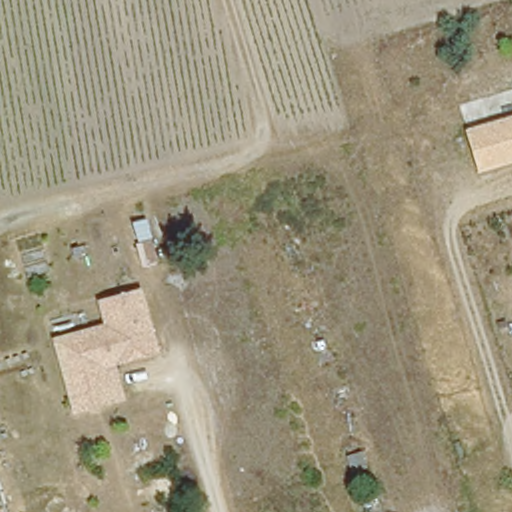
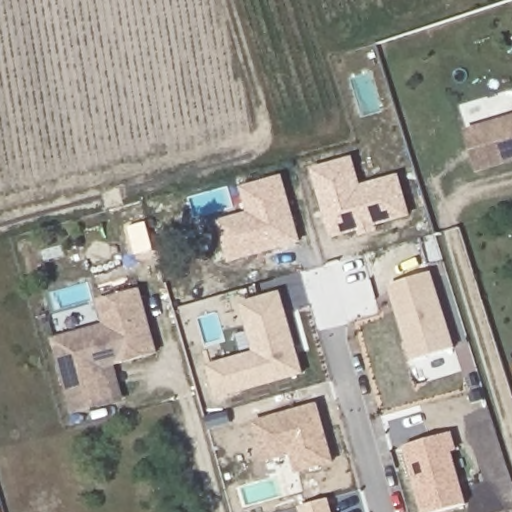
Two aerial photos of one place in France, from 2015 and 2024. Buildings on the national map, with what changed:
unchanged [(512,115),(512,164),(478,174),(466,129),(512,115)]
new [(377,227),(379,231),(362,236),(360,231),(333,239),(312,169),(353,156),(362,184),(400,174),(413,217),(377,227)]
new [(230,264),(219,221),(249,213),(241,187),(285,175),(303,243),(230,264)]
new [(414,362),(391,287),(435,272),(457,348),(414,362)]
unchanged [(117,366),(126,402),(72,418),(50,339),(101,326),(95,302),(144,289),(160,354),(117,366)]
new [(281,292),(305,374),(218,399),(207,365),(254,352),(241,304),(281,292)]
new [(296,474),(291,456),(263,464),(252,422),(320,404),(336,464),(296,474)]
new [(469,504),(443,512),(422,512),(404,447),(453,433),(459,451),(454,453),(469,504)]
new [(300,508),(331,499),(335,512),(302,512),(300,508)]
new [(2,511),(2,512),(0,512),(2,511)]

